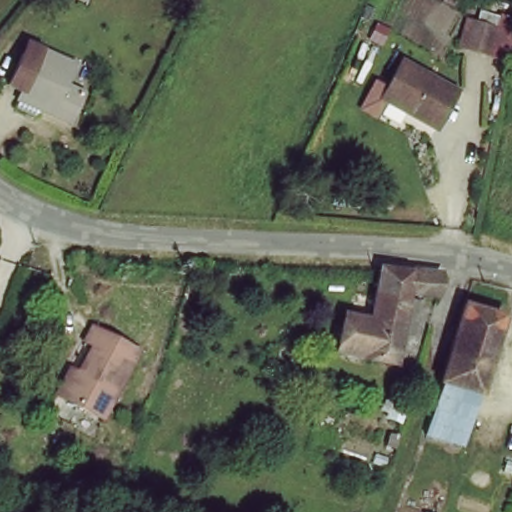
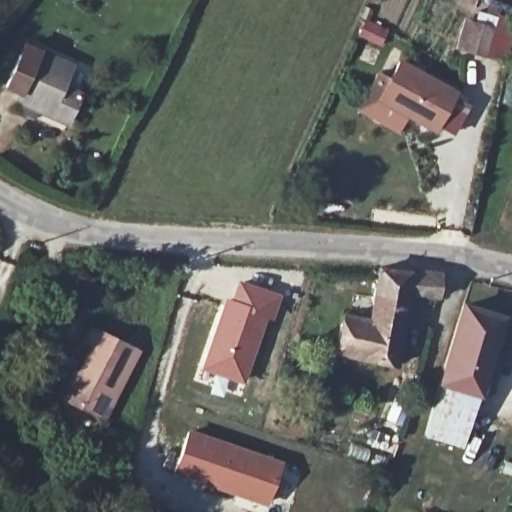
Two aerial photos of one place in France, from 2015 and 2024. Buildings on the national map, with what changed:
unchanged [(512,15),(512,48),(498,42),(509,14),(512,15)]
unchanged [(78,71),(68,90),(86,101),(72,130),(46,117),(49,111),(31,102),(33,97),(15,87),(28,59),(40,66),(47,54),(78,71)]
unchanged [(435,125),(383,93),(404,59),(455,92),(435,125)]
unchanged [(336,355),(331,353),(340,317),(368,322),(375,271),(406,272),(432,273),(433,293),(403,293),(393,366),(336,355)]
new [(225,296),(229,297),(236,279),(282,293),(273,321),(266,319),(243,383),(198,369),(225,296)]
unchanged [(439,387),(461,311),(484,317),(488,308),(501,312),(500,322),(504,323),(480,400),(439,387)]
unchanged [(110,423),(59,396),(97,326),(150,353),(110,423)]
unchanged [(465,444),(427,430),(439,387),(480,400),(465,444)]
new [(171,472),(188,428),(281,460),(265,506),(171,472)]

